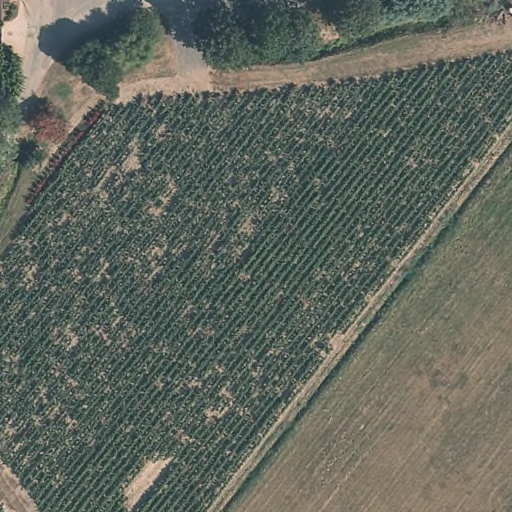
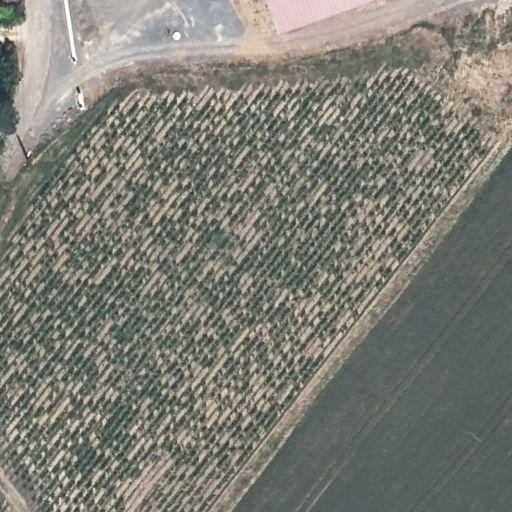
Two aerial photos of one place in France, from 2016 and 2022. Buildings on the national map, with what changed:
new [(278,29),(268,0),(361,0),(278,29)]

